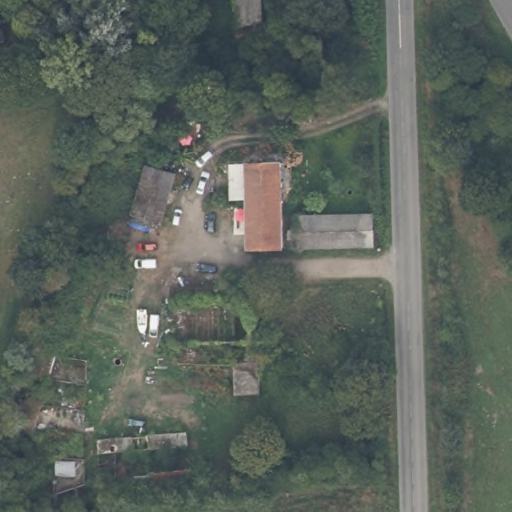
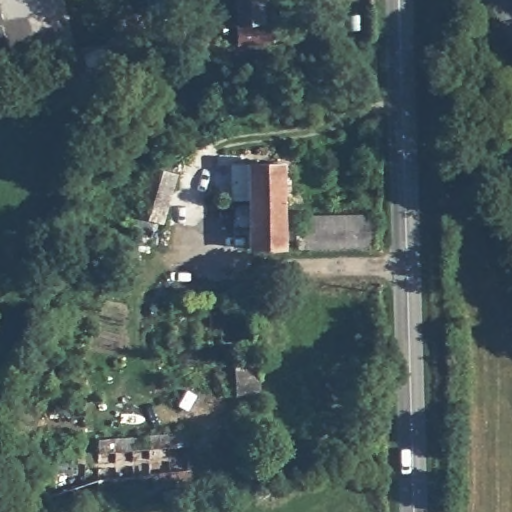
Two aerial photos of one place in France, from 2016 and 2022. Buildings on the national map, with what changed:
unchanged [(258,22),(236,24),(235,0),(256,0),(258,22)]
unchanged [(4,45),(0,46),(0,26),(4,45)]
unchanged [(237,51),(236,39),(235,32),(265,29),(266,37),(266,49),(237,51)]
unchanged [(172,174),(162,222),(132,214),(144,169),(172,174)]
unchanged [(280,170),(285,252),(249,254),(248,171),(280,170)]
unchanged [(374,252),(299,252),(296,222),(374,218),(374,252)]
unchanged [(42,406),(34,437),(20,432),(28,402),(42,406)]
unchanged [(191,442),(192,455),(104,462),(104,449),(191,442)]
unchanged [(102,480),(147,479),(148,475),(195,473),(194,487),(102,489),(102,480)]
unchanged [(56,498),(57,512),(0,512),(0,502),(30,503),(56,498)]

